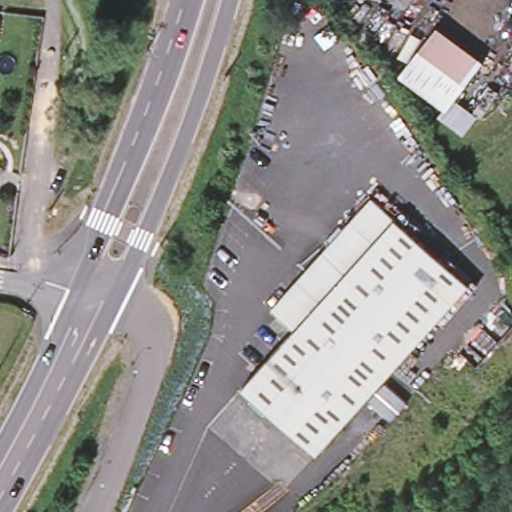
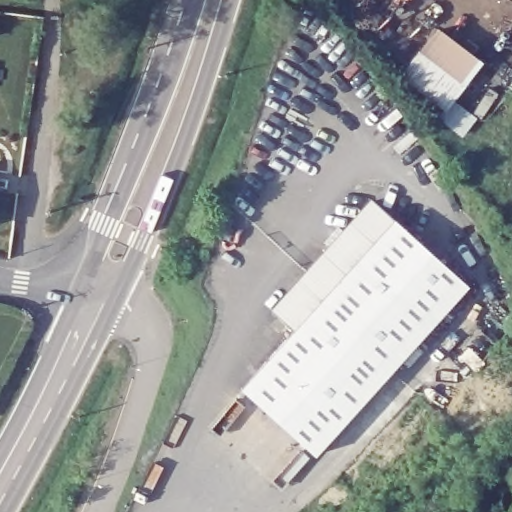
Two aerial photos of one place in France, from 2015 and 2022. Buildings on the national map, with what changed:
unchanged [(437,26),(482,61),(454,101),(472,114),(488,89),(497,93),(482,119),(477,117),(460,137),(437,119),(444,112),(397,76),(437,26)]
unchanged [(290,325),(268,301),(368,190),(467,283),(315,448),(240,382),(290,325)]

